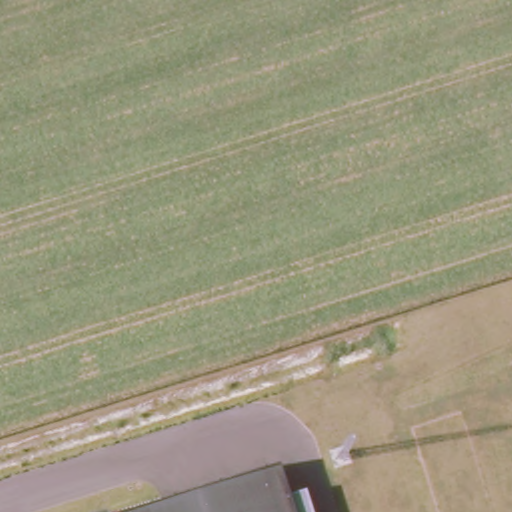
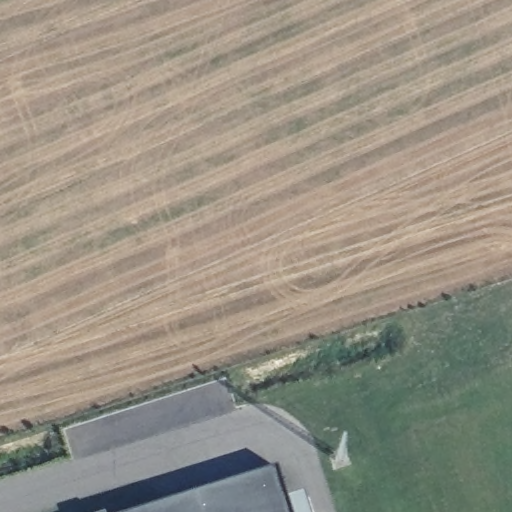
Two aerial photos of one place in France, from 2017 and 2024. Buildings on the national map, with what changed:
unchanged [(275,471),(285,502),(305,496),(309,512),(147,512),(275,471)]

